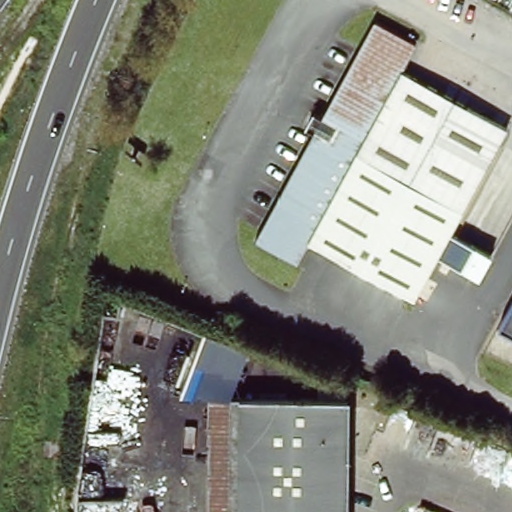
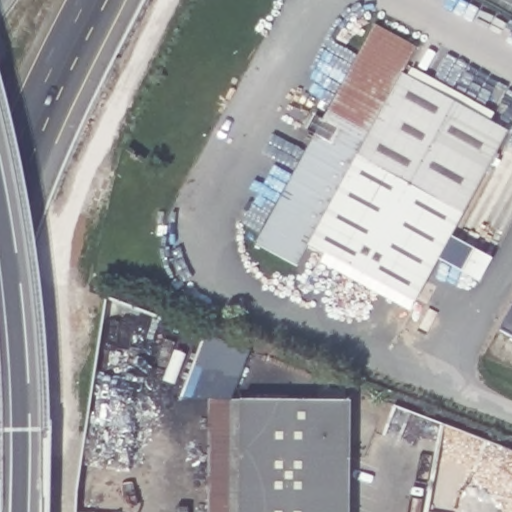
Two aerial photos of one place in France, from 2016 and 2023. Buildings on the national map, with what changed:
unchanged [(406,62),(393,89),(500,145),(420,302),(313,246),(302,266),(260,244),(317,135),(309,130),(317,116),(324,120),(364,41),(406,62)]
unchanged [(497,330),(512,305),(512,338),(497,330)]
unchanged [(248,352),(230,403),(212,402),(181,397),(205,336),(248,352)]
unchanged [(239,512),(210,512),(212,402),(242,403),(239,512)]
unchanged [(349,405),(347,512),(239,512),(242,403),(349,405)]

